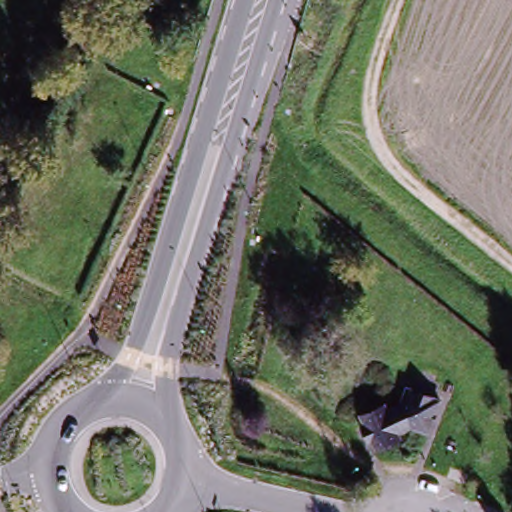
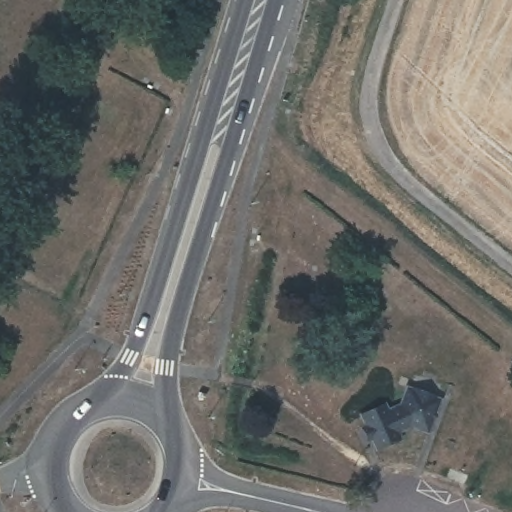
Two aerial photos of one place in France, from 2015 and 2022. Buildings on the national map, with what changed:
unchanged [(408,427),(393,432),(394,440),(372,449),(360,418),(382,406),(386,411),(398,406),(405,386),(435,404),(422,435),(408,427)]

